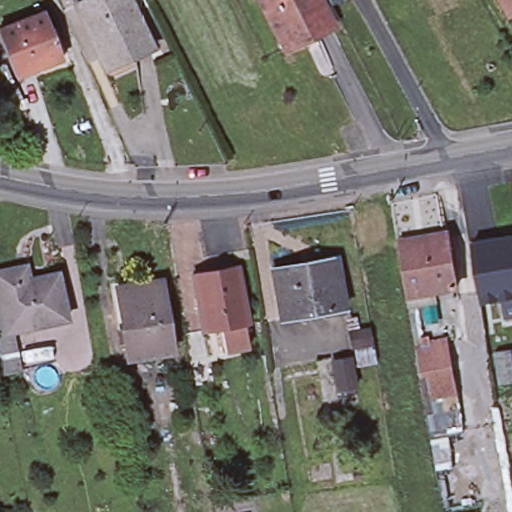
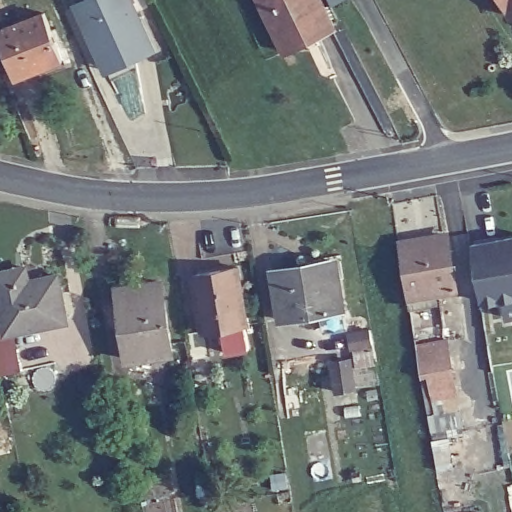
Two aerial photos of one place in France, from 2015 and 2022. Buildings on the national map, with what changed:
unchanged [(74,3),(81,0),(128,0),(151,47),(110,66),(105,68),(92,39),(74,3)]
unchanged [(285,49),(261,0),(317,0),(330,26),(285,49)]
unchanged [(327,6),(324,0),(337,0),(330,4),(327,6)]
unchanged [(500,0),(512,0),(512,22),(500,0)]
unchanged [(62,57),(16,76),(0,38),(0,27),(42,10),(62,57)]
unchanged [(426,241),(425,236),(449,232),(458,285),(416,292),(407,243),(426,241)]
unchanged [(512,235),(512,314),(504,315),(500,295),(480,298),(477,289),(469,242),(512,235)]
unchanged [(337,257),(345,306),(281,317),(272,267),(337,257)]
unchanged [(30,266),(33,282),(62,275),(72,321),(11,332),(0,335),(0,271),(19,267),(30,266)]
unchanged [(236,270),(247,327),(203,334),(192,277),(236,270)]
unchanged [(162,283),(175,356),(129,362),(118,290),(162,283)]
unchanged [(370,328),(375,350),(353,353),(350,332),(370,328)]
unchanged [(436,411),(430,372),(425,342),(448,337),(453,368),(460,407),(436,411)]
unchanged [(512,343),(512,377),(500,378),(495,346),(512,343)]

